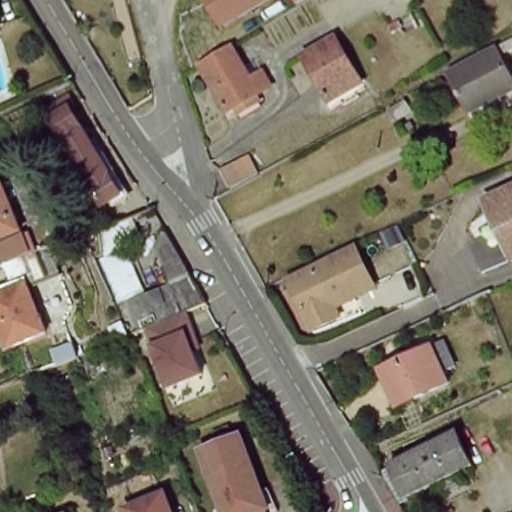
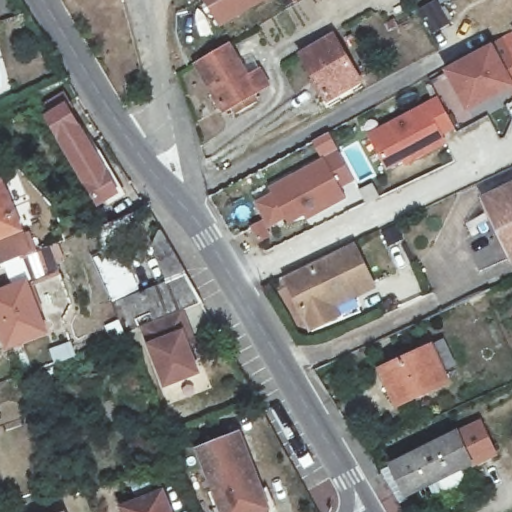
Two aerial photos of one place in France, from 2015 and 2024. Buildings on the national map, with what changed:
unchanged [(224,23),(210,0),(263,0),(224,23)]
unchanged [(0,36),(0,8),(6,34),(0,36)]
unchanged [(335,35),(361,81),(327,101),(301,54),(335,35)]
unchanged [(500,58),(512,81),(512,88),(473,111),(453,73),(512,39),(512,51),(500,58)]
unchanged [(230,50),(250,82),(260,76),(268,88),(224,116),(196,71),(230,50)]
demolished [(384,106),(402,97),(408,107),(391,118),(384,106)]
new [(439,98),(455,128),(441,136),(445,143),(415,160),(412,155),(386,170),(369,137),(439,98)]
unchanged [(98,211),(50,125),(43,114),(68,100),(73,111),(71,112),(118,199),(98,211)]
new [(339,153),(354,181),(340,189),(346,199),(306,221),(305,217),(289,226),(271,192),(339,153)]
demolished [(218,173),(242,157),(251,172),(225,187),(222,181),(221,179),(218,173)]
unchanged [(0,240),(0,183),(4,181),(23,232),(0,240)]
unchanged [(489,195),(512,185),(512,248),(489,195)]
unchanged [(90,230),(99,226),(111,222),(128,215),(137,239),(121,245),(98,253),(90,230)]
unchanged [(168,282),(150,247),(156,232),(197,306),(177,314),(152,324),(141,328),(137,330),(110,340),(105,327),(118,321),(112,305),(143,293),(168,282)]
unchanged [(55,271),(28,281),(20,259),(6,264),(0,248),(26,238),(32,254),(47,248),(55,271)]
unchanged [(121,245),(143,293),(112,305),(93,256),(98,253),(121,245)]
unchanged [(334,320),(313,329),(304,311),(286,276),(326,258),(354,246),(373,289),(353,298),(329,309),(334,320)]
unchanged [(43,334),(8,347),(0,325),(0,292),(23,283),(43,334)]
unchanged [(185,333),(191,349),(184,351),(193,376),(160,389),(137,330),(141,328),(152,324),(177,314),(185,333)]
unchanged [(80,354),(58,363),(54,352),(75,343),(80,354)]
unchanged [(383,367),(436,345),(452,384),(399,406),(383,367)]
unchanged [(79,357),(94,351),(100,368),(85,373),(79,357)]
unchanged [(222,512),(200,454),(216,448),(212,437),(230,430),(233,442),(240,439),(269,512),(222,512)]
unchanged [(383,468),(471,430),(483,460),(395,497),(383,468)]
unchanged [(169,512),(124,512),(123,510),(162,495),(169,512)]
unchanged [(73,512),(70,512),(73,511),(73,512)]

